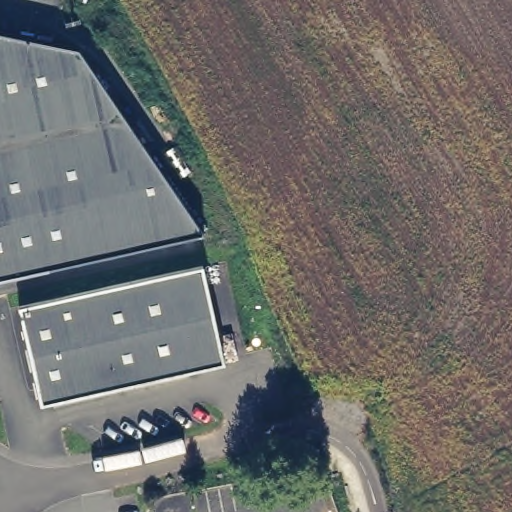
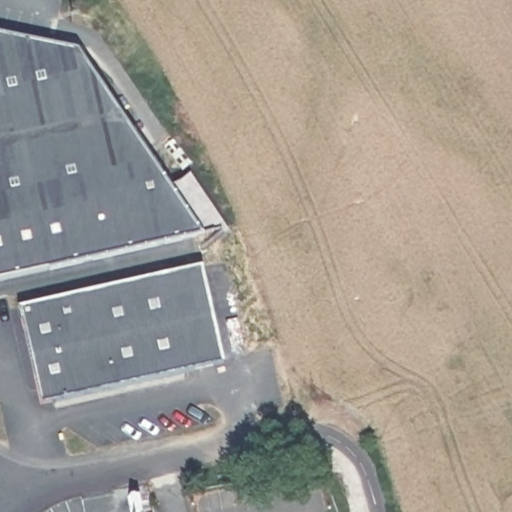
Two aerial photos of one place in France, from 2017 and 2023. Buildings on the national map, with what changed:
unchanged [(79,45),(205,230),(0,276),(0,28),(79,45)]
unchanged [(52,398),(45,385),(43,382),(42,380),(41,377),(40,375),(39,372),(38,370),(37,367),(35,365),(35,363),(35,362),(33,360),(33,358),(32,356),(31,355),(31,353),(30,351),(23,320),(22,320),(18,302),(203,261),(225,360),(52,398)]

